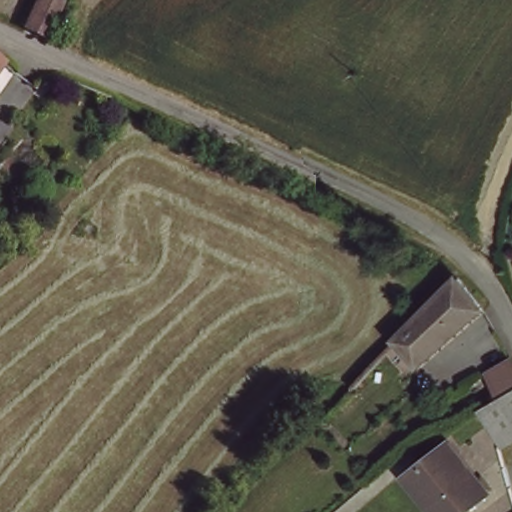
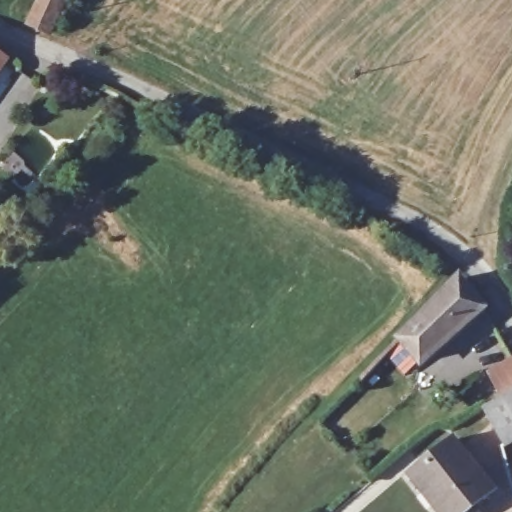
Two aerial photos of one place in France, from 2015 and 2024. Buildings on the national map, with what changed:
unchanged [(58,1),(42,33),(23,24),(35,0),(57,0),(58,1)]
unchanged [(0,71),(0,59),(5,63),(0,71)]
unchanged [(392,340),(402,331),(464,272),(488,302),(422,355),(418,350),(407,359),(392,340)]
unchanged [(473,405),(499,391),(502,381),(494,360),(512,351),(512,432),(498,440),(473,405)]
unchanged [(476,471),(489,489),(461,512),(439,512),(408,471),(450,438),(469,463),(476,471)]

